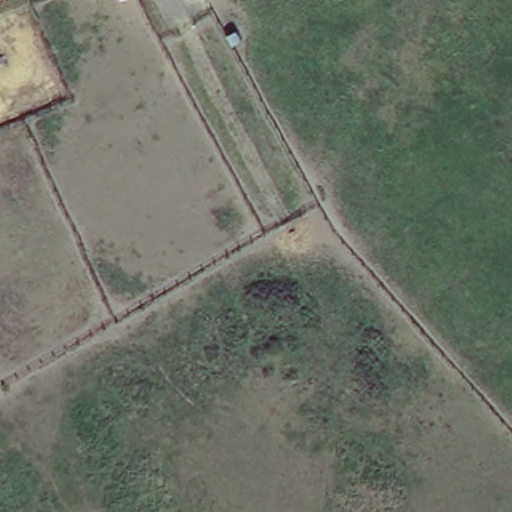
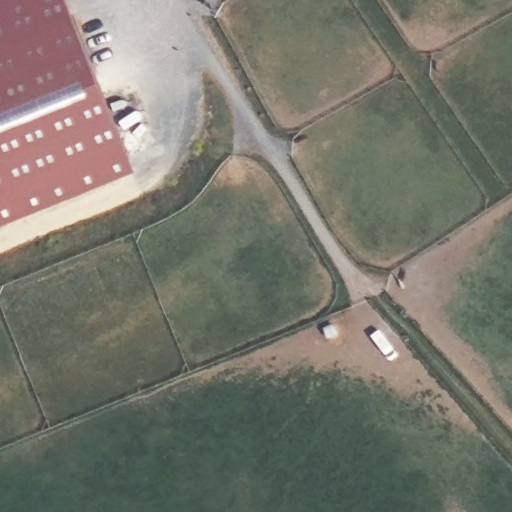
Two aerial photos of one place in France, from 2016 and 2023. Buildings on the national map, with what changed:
new [(72,0),(134,160),(0,211),(0,11),(28,0),(72,0)]

